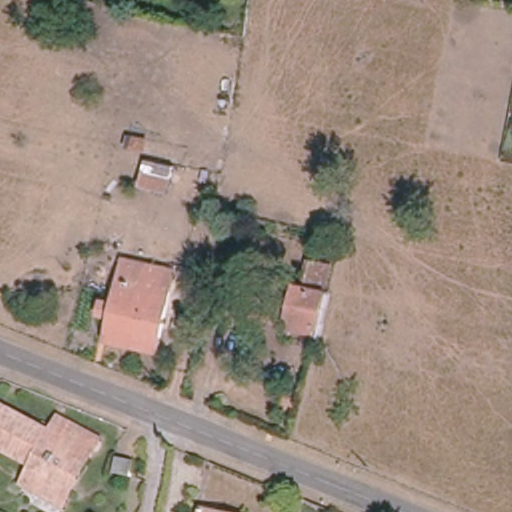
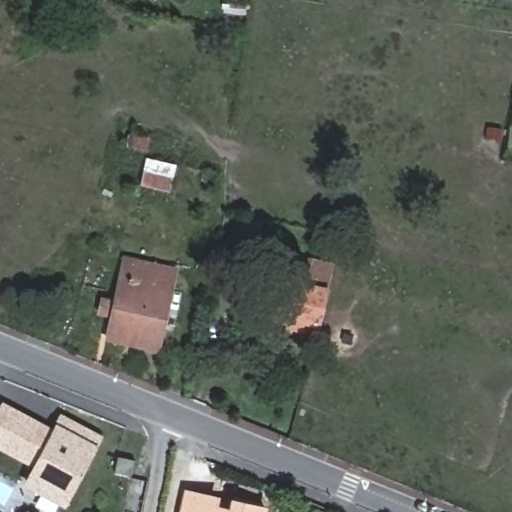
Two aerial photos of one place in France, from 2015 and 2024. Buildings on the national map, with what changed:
unchanged [(151,138),(148,152),(125,147),(129,133),(151,138)]
unchanged [(147,159),(176,165),(170,191),(141,185),(147,159)]
unchanged [(330,259),(325,283),(325,284),(302,278),(308,254),(330,259)]
unchanged [(176,270),(159,350),(108,339),(113,316),(101,313),(104,300),(116,303),(126,259),(176,270)]
unchanged [(289,297),(293,280),(324,287),(314,329),(235,310),(240,286),(289,297)]
unchanged [(0,407),(48,432),(56,417),(96,440),(61,505),(32,490),(46,461),(36,455),(30,465),(0,449),(0,407)]
unchanged [(120,457),(136,461),(134,476),(116,472),(120,457)]
new [(220,496),(217,506),(227,508),(229,499),(266,507),(265,512),(178,512),(183,489),(220,496)]
unchanged [(211,512),(204,512),(205,510),(211,512)]

